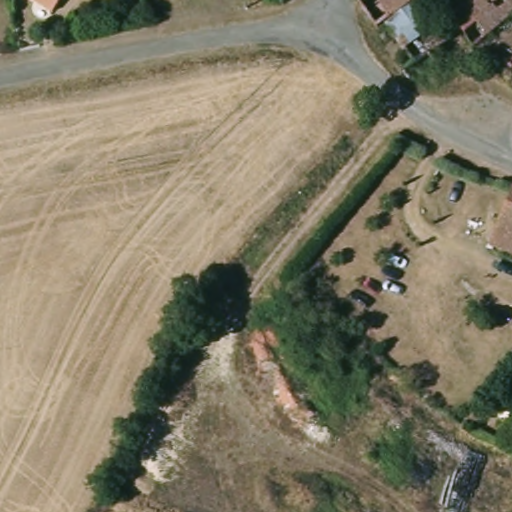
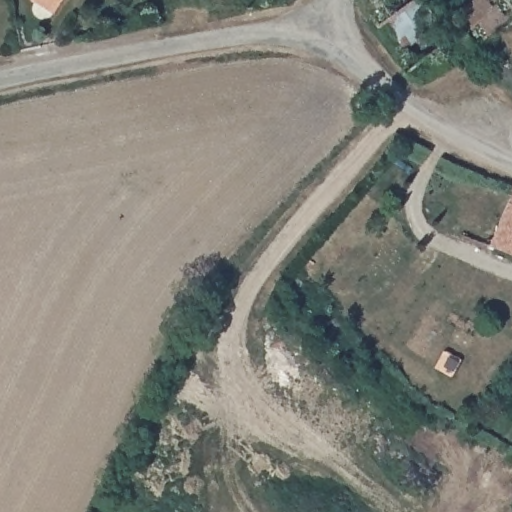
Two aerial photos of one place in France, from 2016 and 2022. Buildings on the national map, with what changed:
unchanged [(53,15),(27,0),(61,0),(53,15)]
unchanged [(380,16),(372,22),(355,0),(417,0),(444,37),(427,50),(426,48),(411,59),(380,16)]
unchanged [(512,10),(468,49),(448,14),(459,5),(462,9),(472,0),(512,0),(512,10)]
unchanged [(512,193),(512,256),(486,246),(512,193)]

